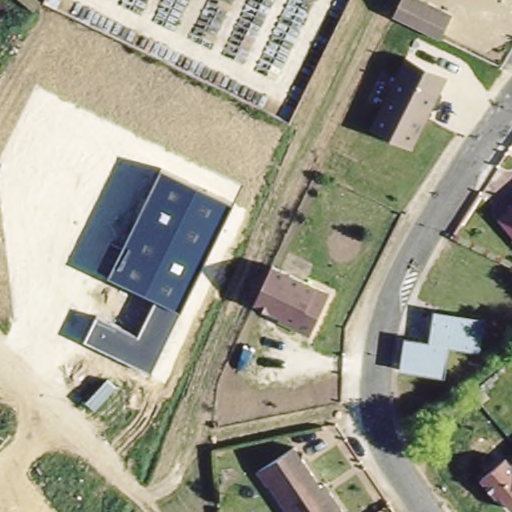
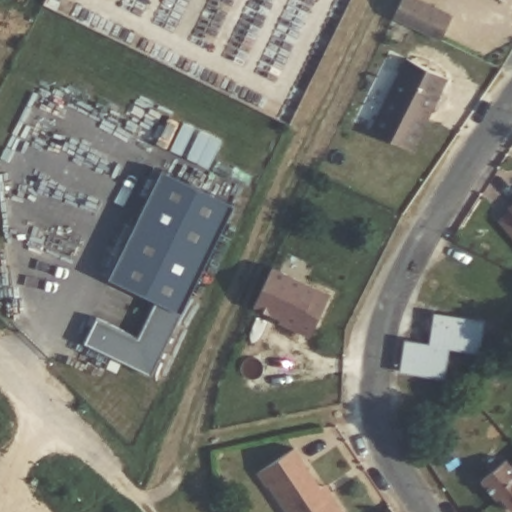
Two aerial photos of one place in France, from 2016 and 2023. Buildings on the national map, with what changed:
unchanged [(428,0),(453,12),(440,38),(393,15),(401,0),(428,0)]
unchanged [(406,54),(450,74),(413,150),(370,130),(406,54)]
unchanged [(96,318),(138,338),(157,301),(95,272),(107,242),(123,249),(160,170),(235,205),(150,374),(85,342),(96,318)]
unchanged [(272,263),(328,291),(310,332),(275,317),(280,308),(256,298),(272,263)]
unchanged [(427,342),(432,312),(483,322),(477,352),(448,347),(442,376),(400,368),(405,339),(427,342)]
unchanged [(421,409),(432,421),(419,433),(408,421),(421,409)]
unchanged [(269,495),(258,479),(296,454),(322,492),(325,490),(331,498),(338,508),(340,512),(285,512),(272,492),(269,495)]
unchanged [(512,462),(512,509),(510,510),(498,495),(495,497),(480,479),(506,456),(512,462)]

